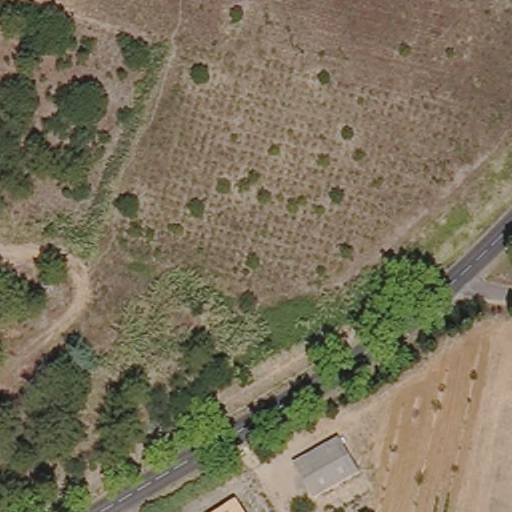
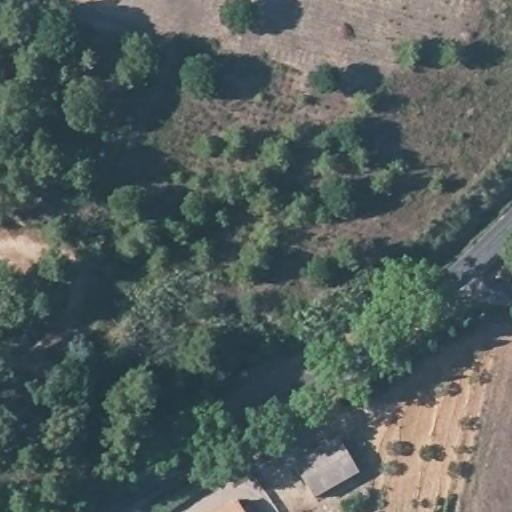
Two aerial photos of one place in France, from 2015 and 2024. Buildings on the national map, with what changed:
unchanged [(360,476),(315,501),(297,467),(341,443),(360,476)]
unchanged [(248,512),(217,512),(239,498),(248,512)]

